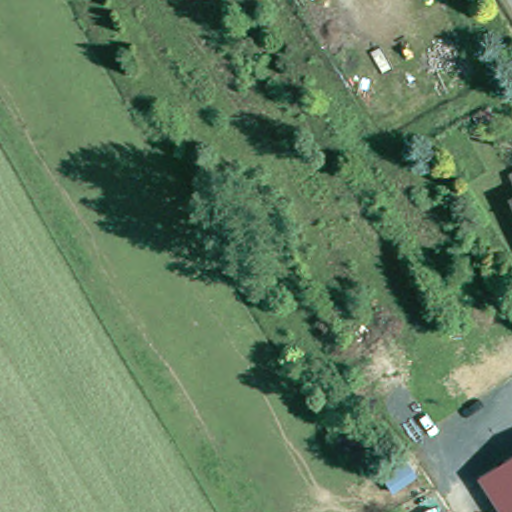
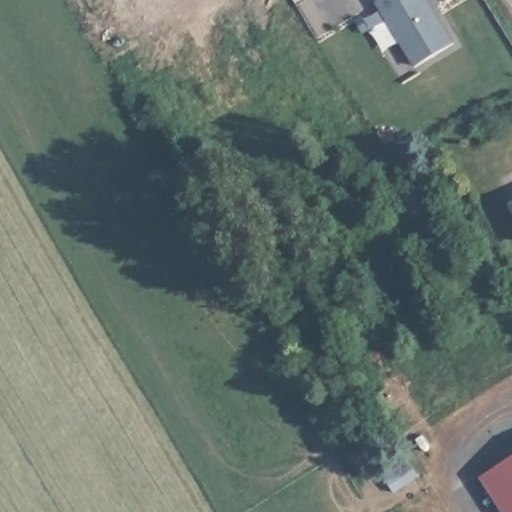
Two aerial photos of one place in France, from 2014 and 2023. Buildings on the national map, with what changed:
new [(374,2),(378,0),(428,0),(454,42),(413,67),(374,2)]
unchanged [(507,175),(512,173),(512,184),(507,175)]
unchanged [(487,487),(484,482),(512,465),(512,512),(501,512),(487,487)]

